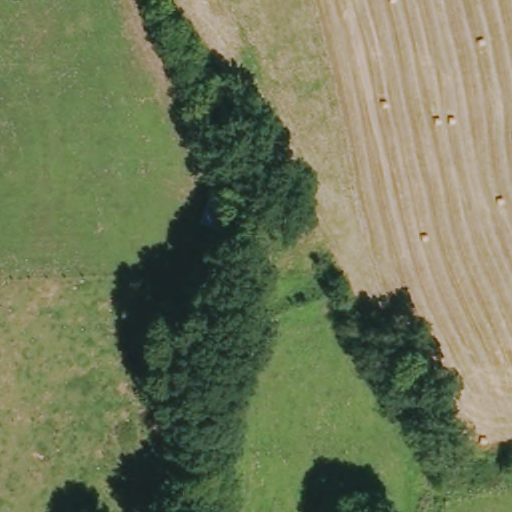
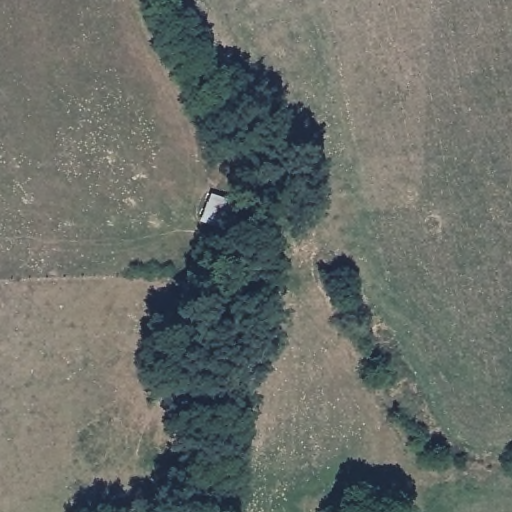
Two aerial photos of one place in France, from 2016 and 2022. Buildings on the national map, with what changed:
unchanged [(189,223),(202,192),(228,202),(215,235),(189,223)]

